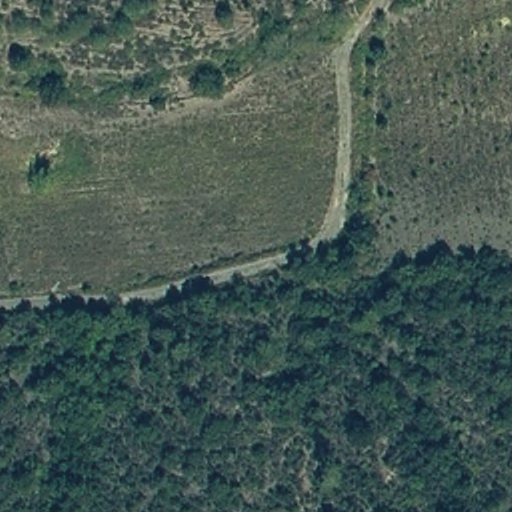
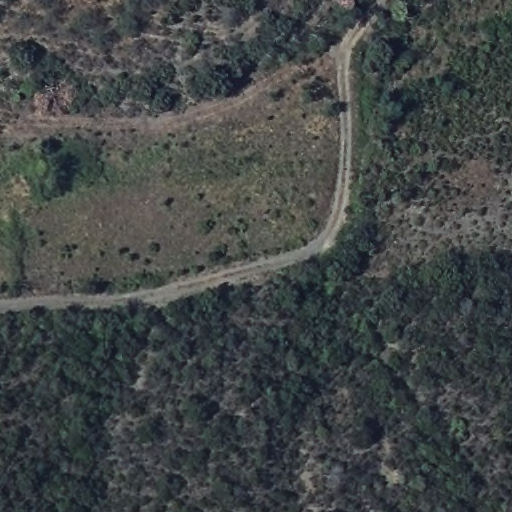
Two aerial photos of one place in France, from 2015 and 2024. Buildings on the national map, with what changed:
unchanged [(339,2),(343,0),(353,0),(358,14),(346,20),(339,2)]

